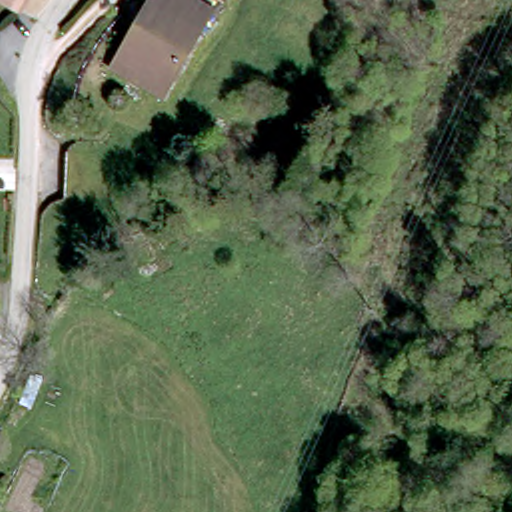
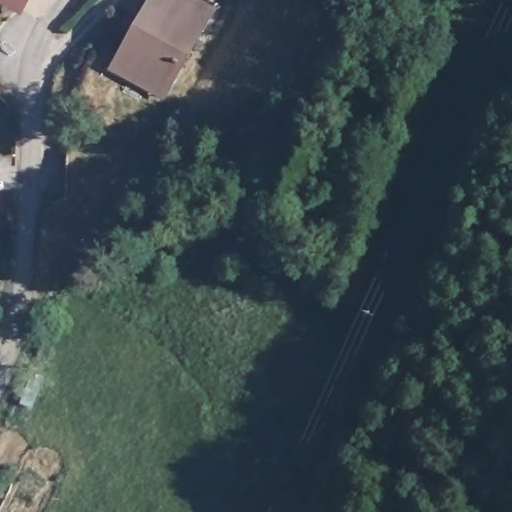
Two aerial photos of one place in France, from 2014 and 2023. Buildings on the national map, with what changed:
unchanged [(0,1),(0,0),(26,0),(20,11),(0,1)]
unchanged [(206,42),(200,38),(166,92),(127,68),(164,10),(169,12),(176,0),(190,0),(221,19),(206,42)]
unchanged [(115,198),(100,239),(53,222),(69,180),(115,198)]

